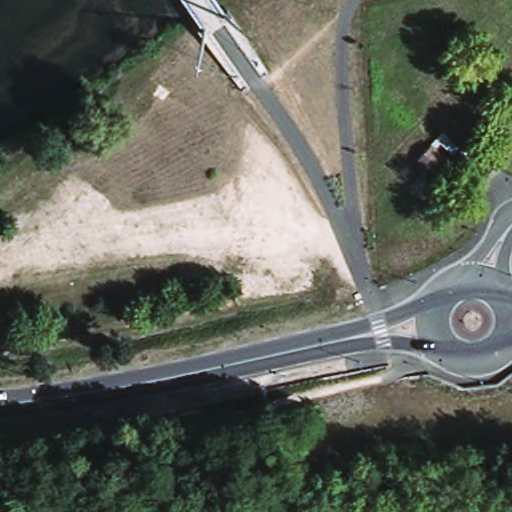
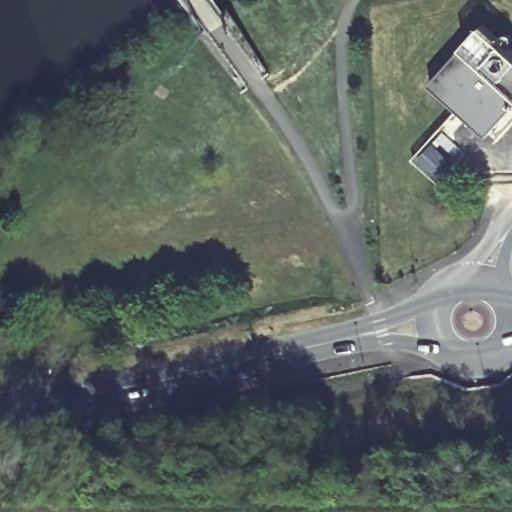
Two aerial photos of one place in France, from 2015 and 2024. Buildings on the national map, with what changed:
new [(486,134),(429,83),(463,44),(482,22),(512,50),(512,107),(486,134)]
unchanged [(441,162),(434,169),(416,151),(428,139),(439,150),(446,157),(441,162)]

